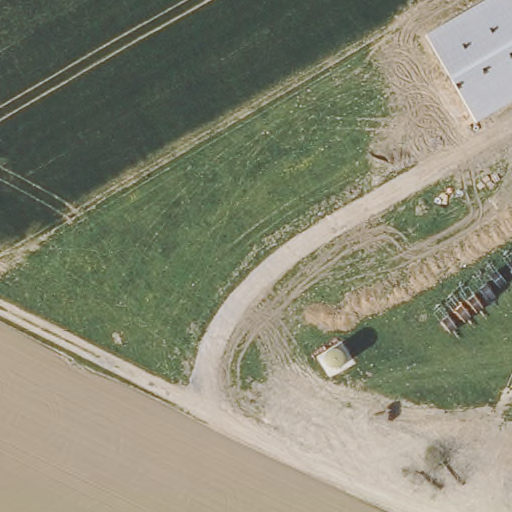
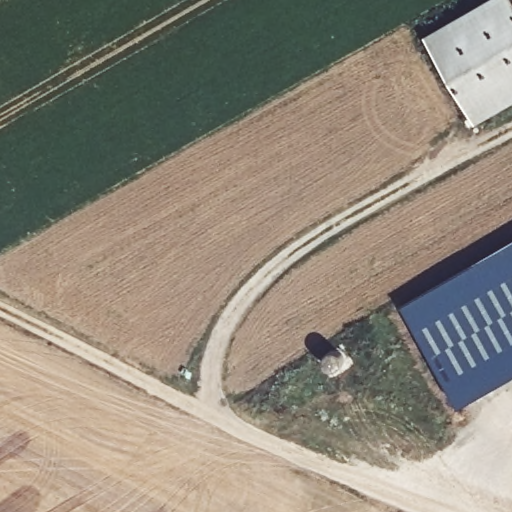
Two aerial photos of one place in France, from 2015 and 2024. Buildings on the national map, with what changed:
unchanged [(477,122),(426,36),(488,0),(512,0),(512,102),(477,122)]
new [(400,309),(512,245),(512,380),(459,411),(400,309)]

